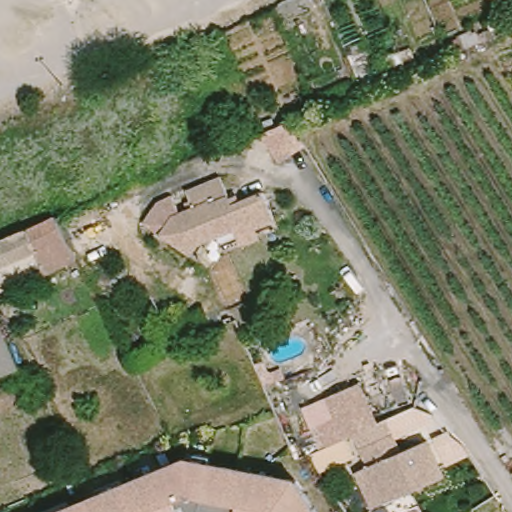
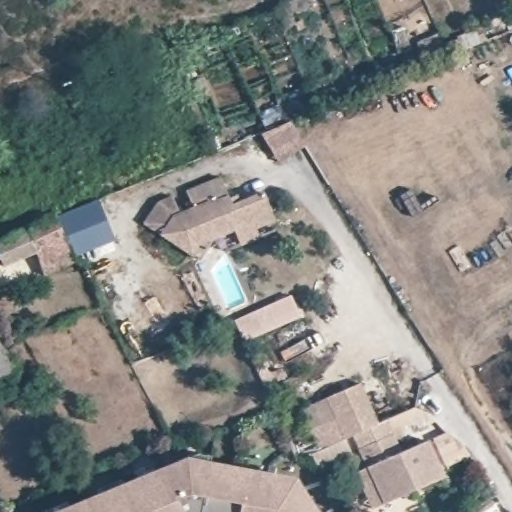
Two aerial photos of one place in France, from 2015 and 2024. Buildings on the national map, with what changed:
unchanged [(444,42),(455,37),(456,34),(469,28),(470,30),(474,29),(475,31),(487,27),(484,19),(490,16),(494,14),(499,25),(493,28),(495,35),(447,55),(442,44),(445,43),(444,42)]
unchanged [(319,93),(324,106),(314,110),(309,97),(319,93)]
new [(288,121),(302,143),(278,156),(262,131),(288,121)]
unchanged [(154,235),(136,226),(152,203),(167,195),(174,215),(186,210),(179,192),(213,178),(221,199),(228,196),(231,203),(255,194),(266,221),(241,231),(238,225),(208,238),(193,261),(183,255),(154,235)]
new [(99,199),(114,240),(80,254),(63,223),(60,224),(55,217),(99,199)]
unchanged [(54,277),(45,257),(12,270),(10,267),(0,271),(0,250),(63,223),(85,264),(54,277)]
new [(291,294),(300,316),(242,341),(233,319),(291,294)]
unchanged [(22,369),(0,378),(0,316),(22,369)]
unchanged [(338,437),(323,394),(357,382),(372,425),(338,437)]
unchanged [(358,448),(393,433),(401,451),(427,441),(442,478),(380,503),(369,508),(359,484),(371,479),(358,448)]
unchanged [(259,438),(277,434),(282,450),(262,455),(259,438)]
unchanged [(59,499),(60,503),(93,490),(91,486),(114,476),(117,481),(177,457),(279,480),(291,483),(297,492),(310,512),(37,512),(35,508),(59,499)]

